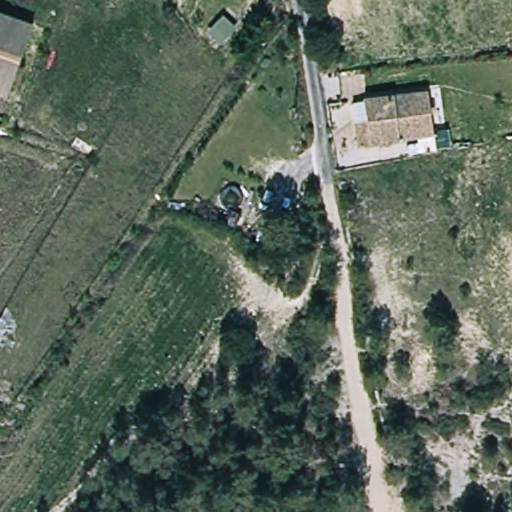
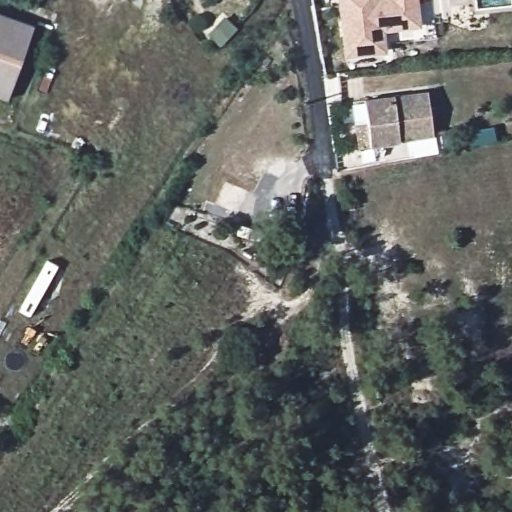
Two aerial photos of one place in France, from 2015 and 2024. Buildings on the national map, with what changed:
new [(385,32),(387,53),(344,58),(338,0),(419,0),(421,27),(385,32)]
unchanged [(11,102),(0,99),(0,17),(35,29),(11,102)]
unchanged [(351,100),(361,99),(425,91),(432,137),(375,146),(369,147),(359,150),(351,100)]
new [(432,134),(443,131),(445,149),(435,150),(432,134)]

